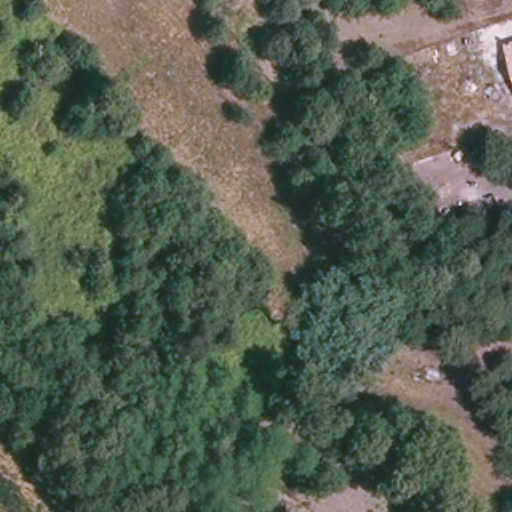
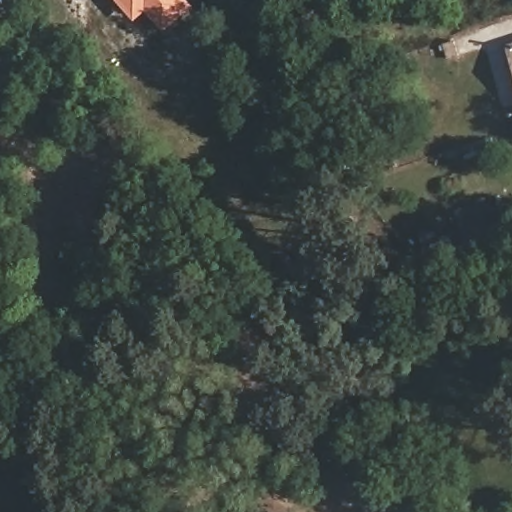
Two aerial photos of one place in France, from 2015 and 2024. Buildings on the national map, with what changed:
new [(193,6),(164,32),(146,12),(134,22),(115,0),(188,0),(193,6)]
unchanged [(512,43),(512,63),(506,45),(512,43)]

